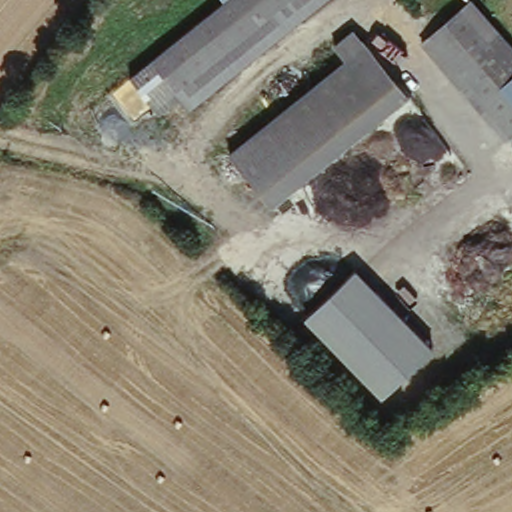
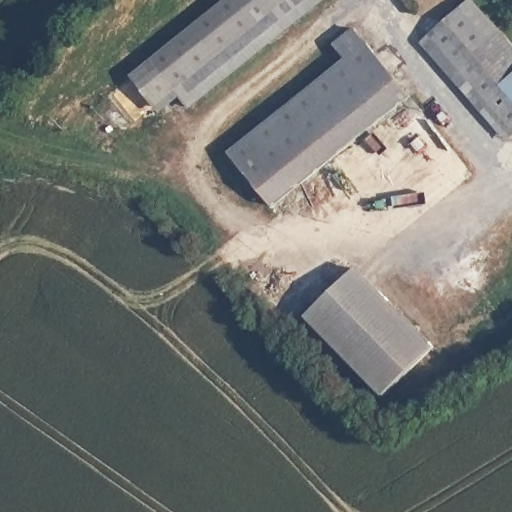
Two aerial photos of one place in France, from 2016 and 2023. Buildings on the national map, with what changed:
unchanged [(220,3),(217,0),(321,0),(164,126),(126,80),(220,3)]
unchanged [(512,135),(502,144),(418,46),(465,2),(512,52),(512,135)]
unchanged [(406,97),(267,207),(225,157),(341,62),(330,48),(351,31),(406,97)]
unchanged [(355,266),(432,346),(383,393),(306,314),(355,266)]

